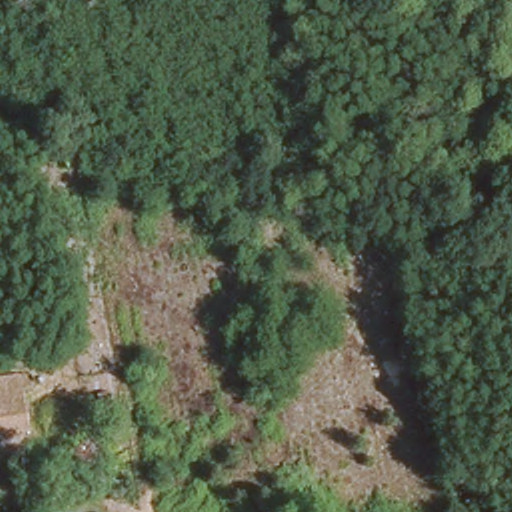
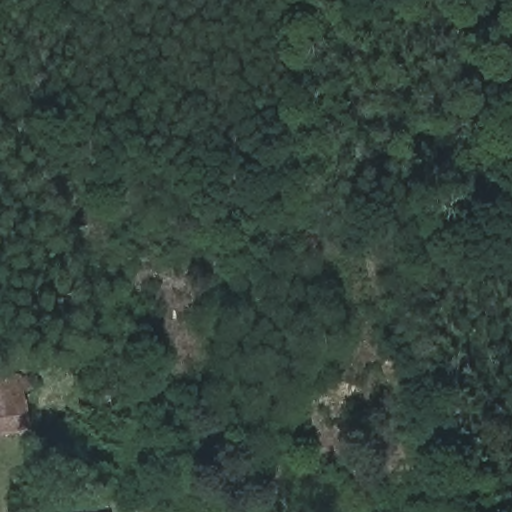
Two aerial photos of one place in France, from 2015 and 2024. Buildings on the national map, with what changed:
unchanged [(24,425),(0,428),(0,371),(16,368),(24,425)]
unchanged [(109,512),(104,512),(109,511),(109,512)]

